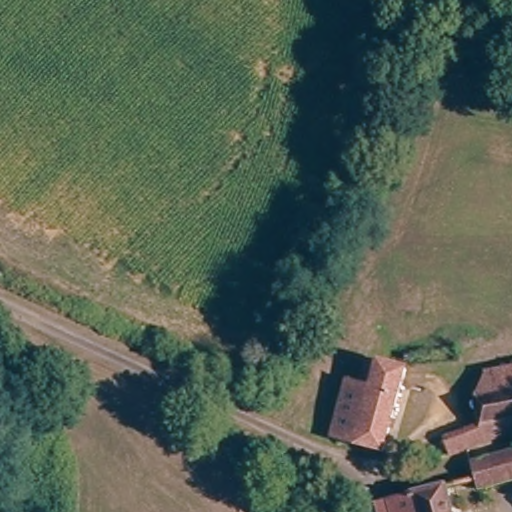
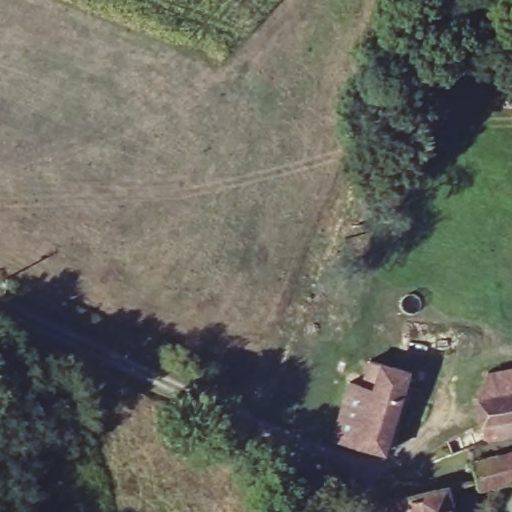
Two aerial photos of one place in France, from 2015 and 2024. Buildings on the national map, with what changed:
unchanged [(412,368),(411,379),(402,378),(384,453),(307,431),(316,405),(337,412),(347,377),(358,380),(366,357),(404,366),(412,368)]
unchanged [(441,431),(484,422),(477,383),(482,373),(488,372),(512,367),(512,428),(442,442),(441,431)]
unchanged [(467,460),(512,450),(512,475),(473,485),(467,460)]
unchanged [(387,491),(441,480),(448,512),(390,512),(387,491)]

